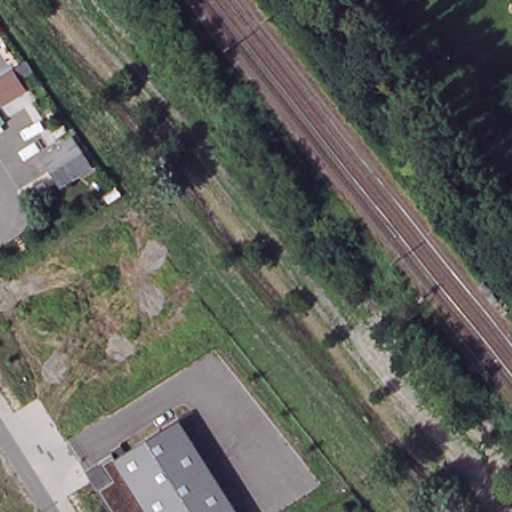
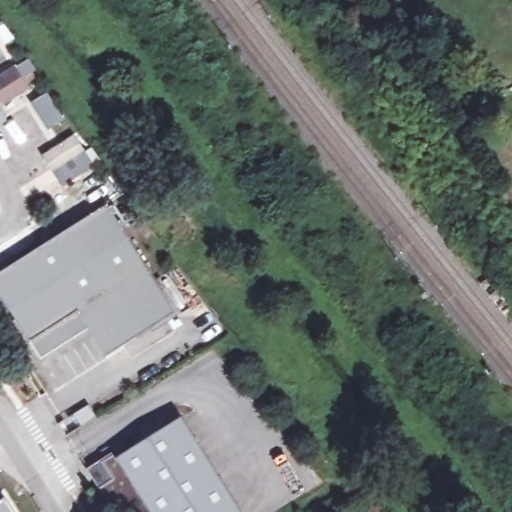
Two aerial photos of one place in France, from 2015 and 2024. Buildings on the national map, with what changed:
new [(22,91),(3,103),(0,98),(0,78),(10,71),(22,91)]
new [(0,123),(0,111),(5,119),(0,123)]
new [(75,135),(95,166),(62,187),(42,156),(75,135)]
new [(0,274),(106,206),(175,313),(106,356),(88,329),(40,360),(30,343),(0,295),(0,274)]
unchanged [(240,512),(113,512),(87,470),(114,452),(118,457),(182,421),(240,512)]
new [(0,504),(8,499),(16,512),(0,512),(0,504)]

